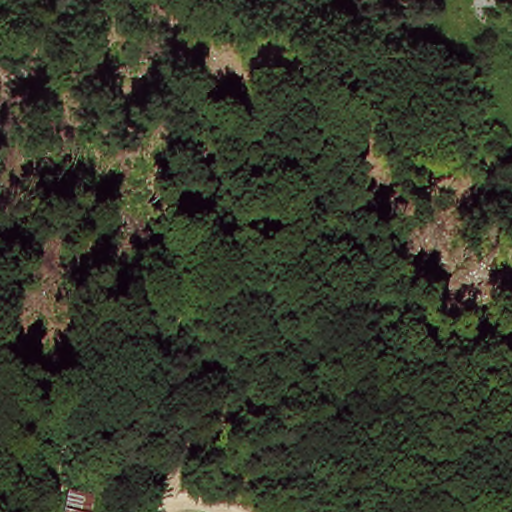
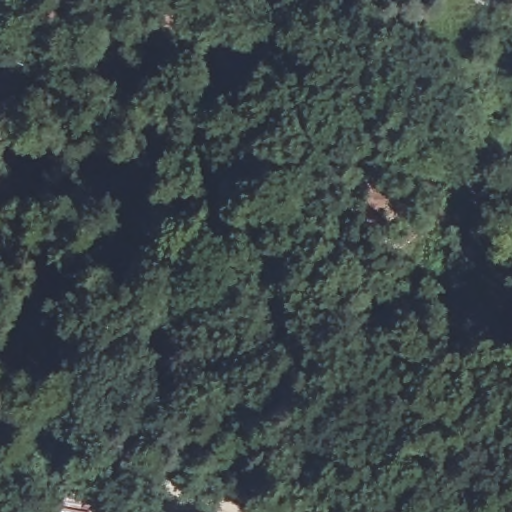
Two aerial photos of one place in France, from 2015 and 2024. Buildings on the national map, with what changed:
unchanged [(92,512),(63,512),(65,490),(93,491),(92,512)]

